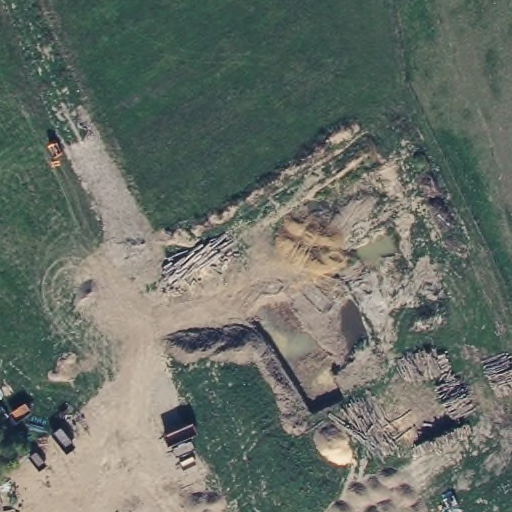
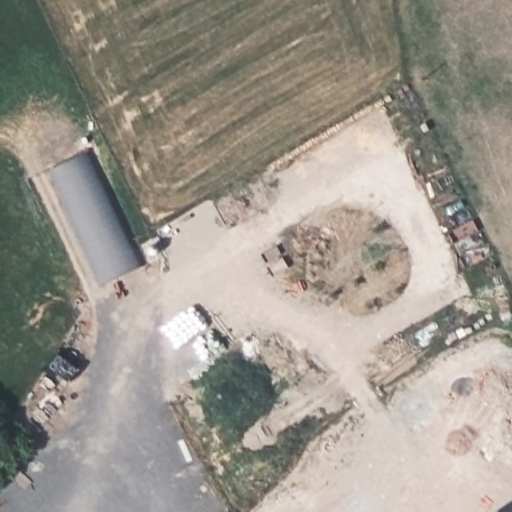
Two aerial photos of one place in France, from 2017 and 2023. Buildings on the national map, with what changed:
new [(52,173),(87,156),(142,268),(105,286),(52,173)]

